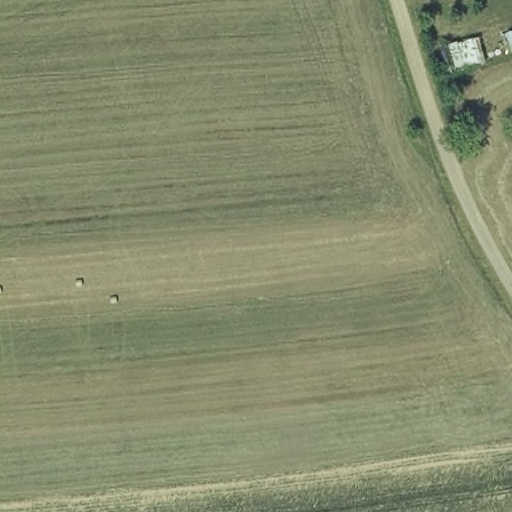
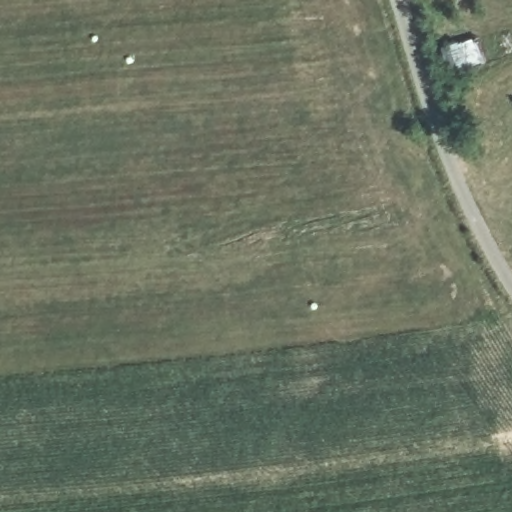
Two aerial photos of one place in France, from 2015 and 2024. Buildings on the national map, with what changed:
unchanged [(453,75),(445,45),(512,26),(512,57),(453,75)]

